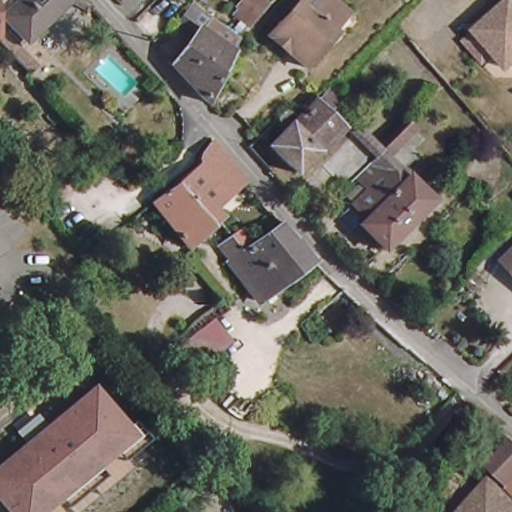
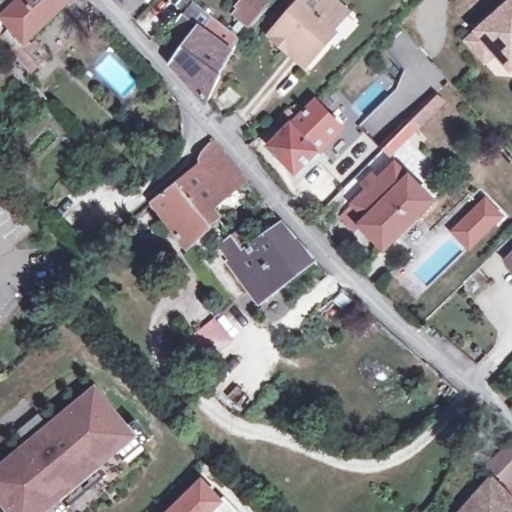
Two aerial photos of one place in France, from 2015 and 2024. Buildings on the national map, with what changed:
unchanged [(32,67),(16,50),(0,34),(0,25),(0,0),(67,0),(30,35),(48,52),(34,69),(32,67)]
unchanged [(245,27),(232,15),(237,7),(228,0),(266,0),(268,1),(245,27)]
unchanged [(320,37),(325,41),(302,65),(269,33),(299,0),(335,0),(345,10),(320,37)]
unchanged [(495,55),(485,65),(463,41),(475,30),(510,0),(512,0),(512,73),(495,55)]
unchanged [(170,73),(172,70),(198,35),(181,22),(190,10),(237,46),(235,49),(230,59),(205,110),(170,73)]
unchanged [(155,96),(157,94),(165,102),(141,126),(133,117),(141,110),(155,96)]
unchanged [(310,108),(335,135),(290,179),(264,154),(292,126),(310,108)]
unchanged [(197,160),(200,150),(210,138),(242,176),(208,205),(215,214),(210,218),(178,175),(197,160)]
unchanged [(355,193),(370,177),(368,175),(371,172),(380,165),(425,211),(378,258),(355,235),(360,229),(347,215),(362,200),(355,193)]
unchanged [(171,181),(178,175),(210,218),(213,221),(186,242),(150,197),(171,181)]
new [(505,215),(470,252),(450,231),(486,196),(505,215)]
unchanged [(215,249),(230,237),(242,229),(255,245),(280,226),(313,263),(257,304),(238,278),(237,280),(225,266),(228,265),(215,249)]
unchanged [(497,255),(512,240),(512,270),(497,255)]
unchanged [(484,278),(470,291),(462,282),(469,275),(475,269),(484,278)]
unchanged [(199,360),(187,345),(177,331),(205,308),(217,322),(210,327),(222,342),(199,360)]
unchanged [(0,505),(0,463),(22,443),(15,432),(37,415),(46,426),(95,386),(137,436),(47,512),(6,512),(0,505)]
unchanged [(510,441),(512,444),(512,497),(485,467),(510,441)]
new [(241,512),(162,512),(199,475),(218,495),(222,490),(242,511),(241,512)]
unchanged [(465,508),(463,506),(485,481),(512,507),(512,512),(462,512),(465,508)]
unchanged [(422,511),(421,512),(408,512),(415,505),(422,511)]

